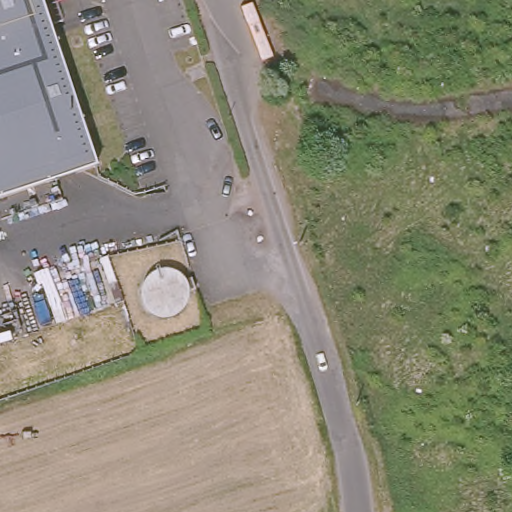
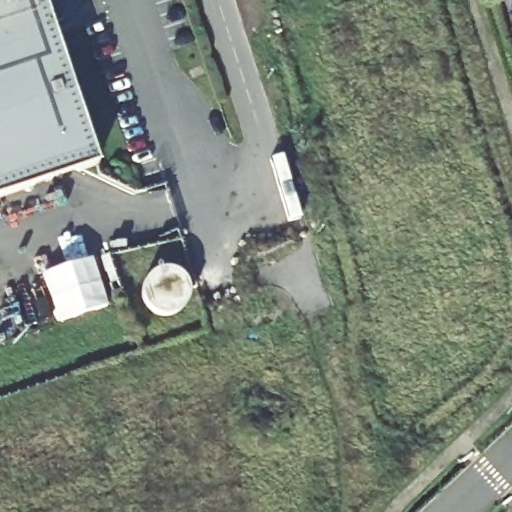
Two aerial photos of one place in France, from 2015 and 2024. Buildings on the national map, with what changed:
unchanged [(0,0),(40,0),(93,167),(0,197),(0,0)]
new [(107,308),(58,323),(43,275),(91,260),(107,308)]

